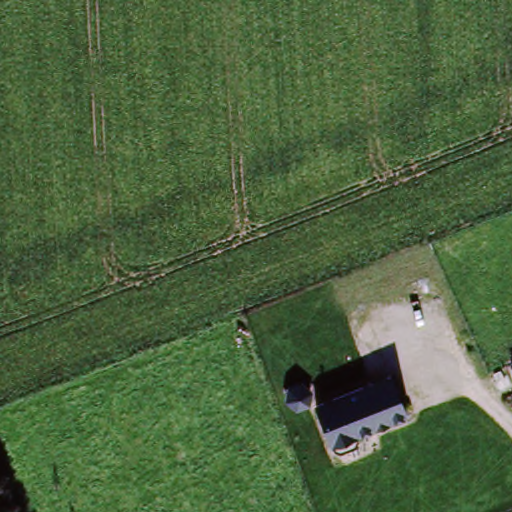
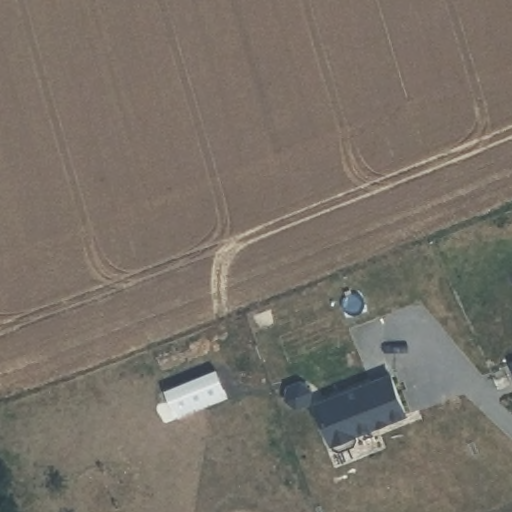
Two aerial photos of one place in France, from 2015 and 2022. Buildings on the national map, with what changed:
new [(215,375),(227,398),(177,419),(165,394),(215,375)]
unchanged [(407,417),(357,438),(356,444),(337,452),(329,446),(315,404),(390,375),(407,417)]

